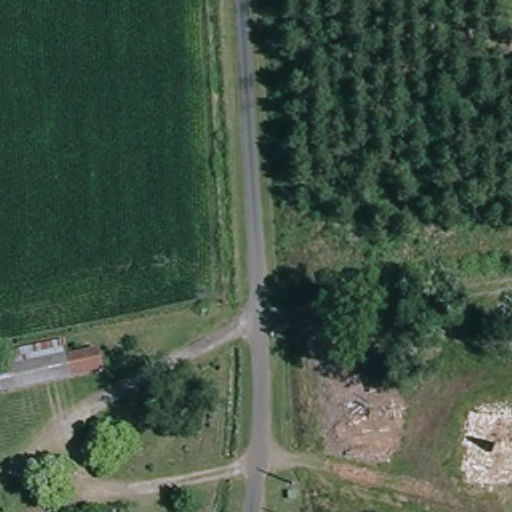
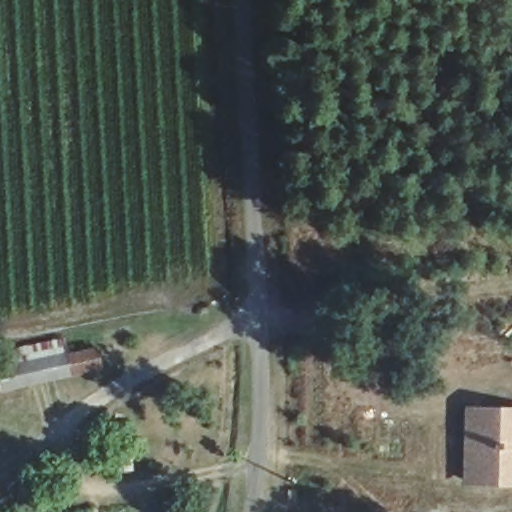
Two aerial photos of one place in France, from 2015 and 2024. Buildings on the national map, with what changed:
unchanged [(0,370),(5,369),(3,357),(62,344),(66,355),(97,346),(104,371),(0,395),(0,370)]
new [(512,406),(512,489),(463,487),(466,406),(512,406)]
demolished [(512,416),(512,485),(467,483),(466,413),(512,416)]

